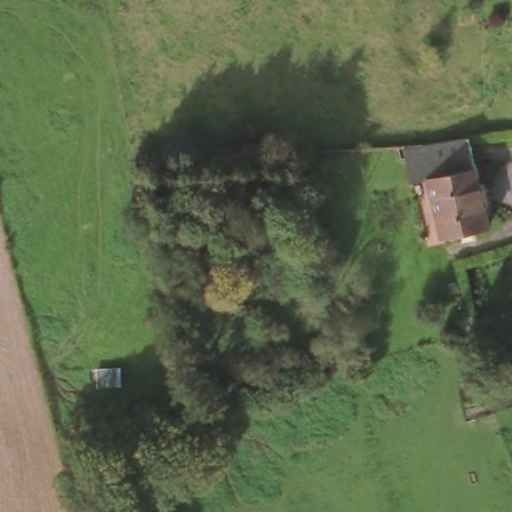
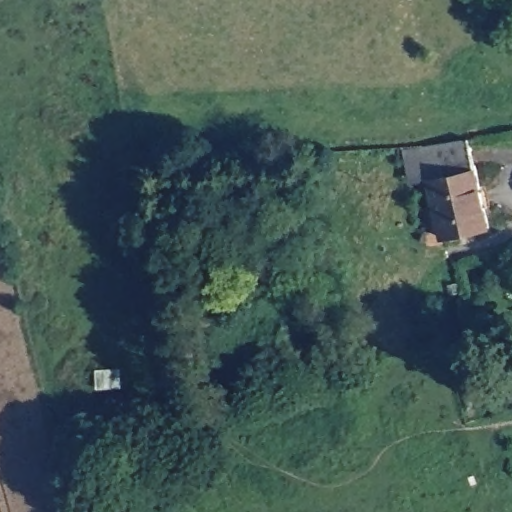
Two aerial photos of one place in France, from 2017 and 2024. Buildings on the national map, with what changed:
unchanged [(492,228),(440,240),(428,180),(406,183),(403,148),(472,136),(477,167),(492,228)]

